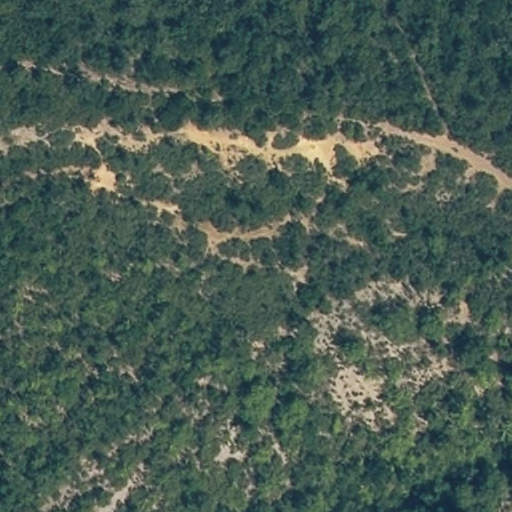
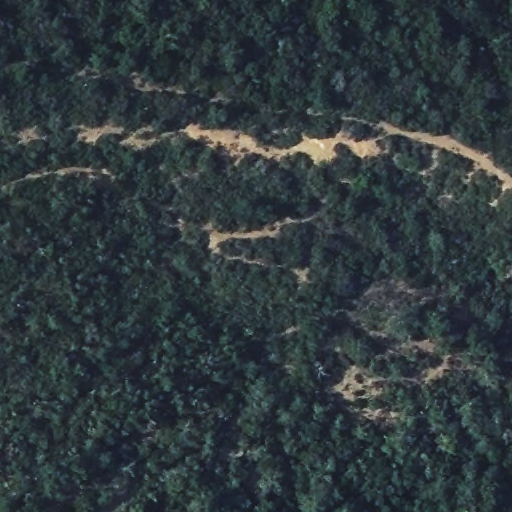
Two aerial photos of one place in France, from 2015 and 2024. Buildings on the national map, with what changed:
[]

